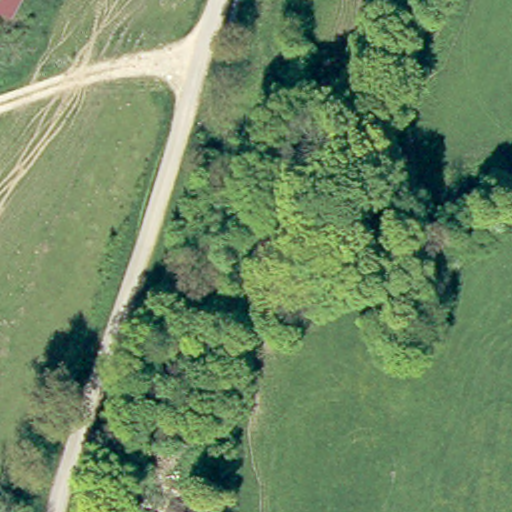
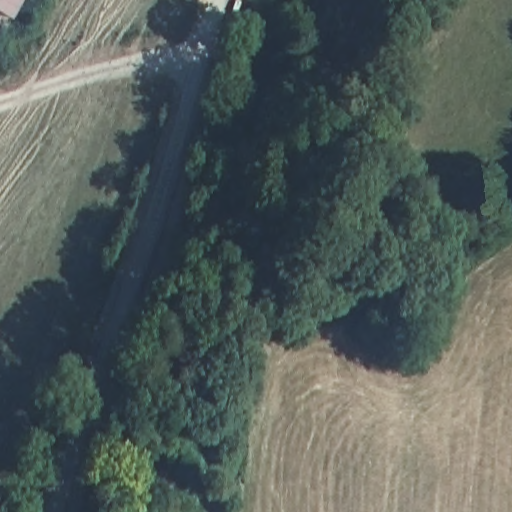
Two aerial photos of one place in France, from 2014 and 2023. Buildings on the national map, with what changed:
unchanged [(0,12),(0,0),(22,0),(12,19),(0,12)]

